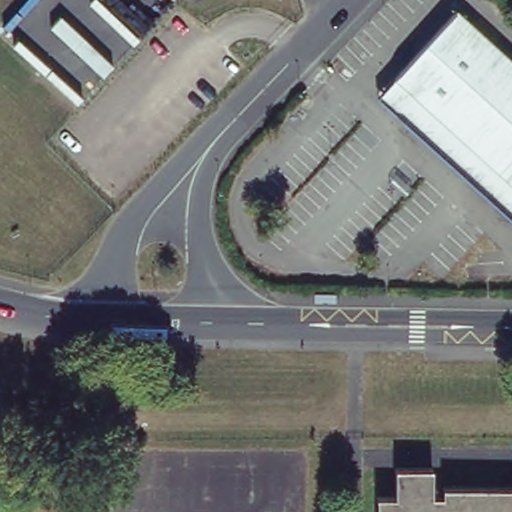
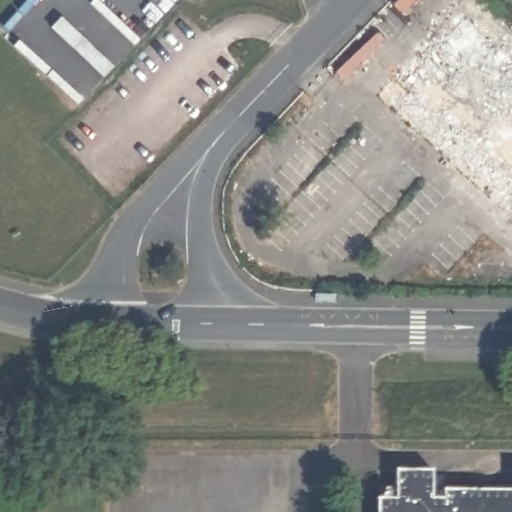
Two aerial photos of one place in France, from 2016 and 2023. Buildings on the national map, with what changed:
demolished [(455,9),(512,61),(512,218),(396,112),(413,93),(395,76),(455,9)]
unchanged [(395,498),(395,469),(432,470),(431,497),(442,497),(443,489),(512,489),(512,512),(376,512),(376,498),(395,498)]

